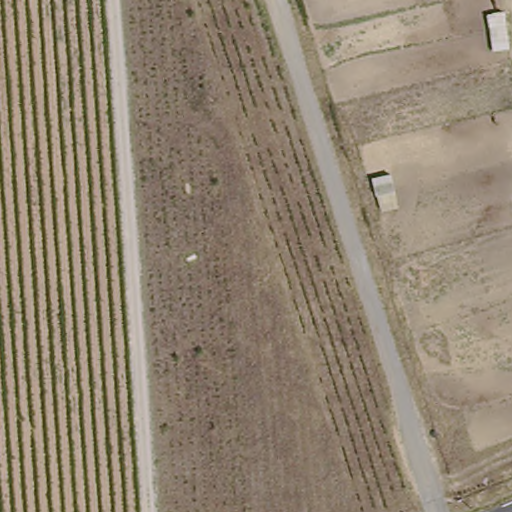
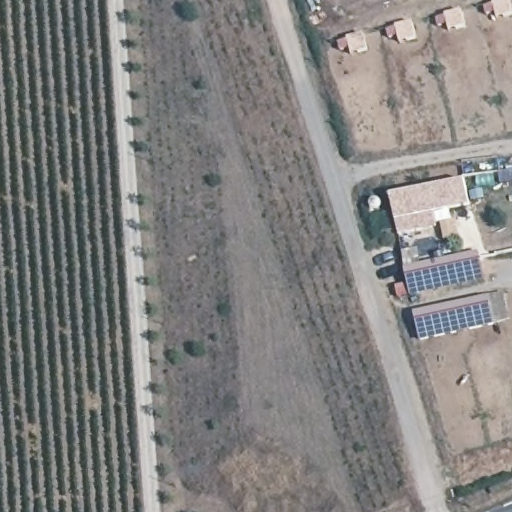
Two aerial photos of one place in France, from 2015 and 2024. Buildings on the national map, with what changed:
new [(510,14),(493,18),(490,1),(493,0),(508,0),(510,14)]
new [(462,27),(445,30),(442,14),(460,11),(462,27)]
new [(386,195),(460,180),(465,204),(435,211),(438,226),(395,235),(391,220),(386,195)]
new [(476,257),(482,284),(408,300),(403,272),(476,257)]
new [(491,326),(417,341),(411,314),(485,299),(491,326)]

